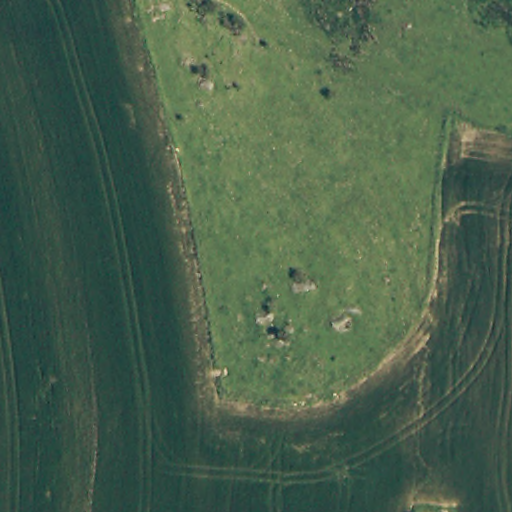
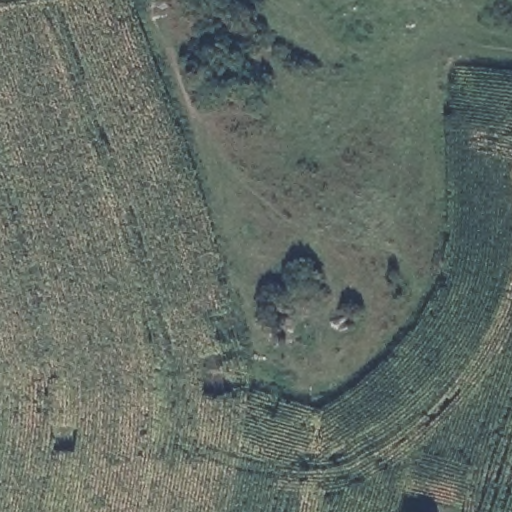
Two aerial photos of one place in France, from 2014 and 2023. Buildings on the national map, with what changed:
[]

